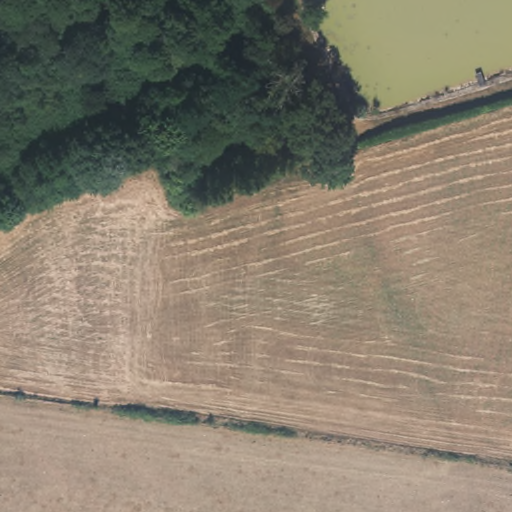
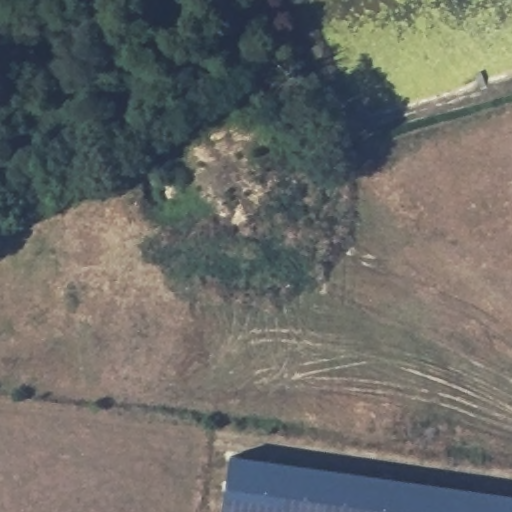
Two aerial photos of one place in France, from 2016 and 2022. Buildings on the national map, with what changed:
new [(230,453),(512,492),(512,512),(223,512),(230,453)]

